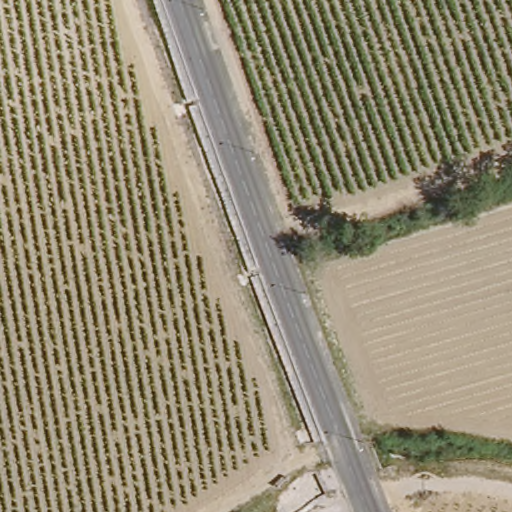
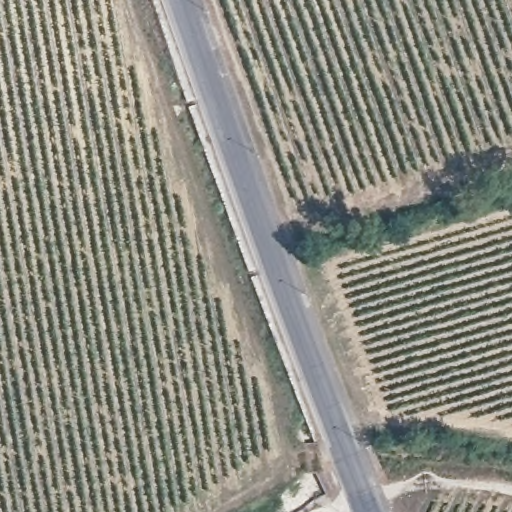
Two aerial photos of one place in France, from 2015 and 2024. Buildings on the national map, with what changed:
[]

